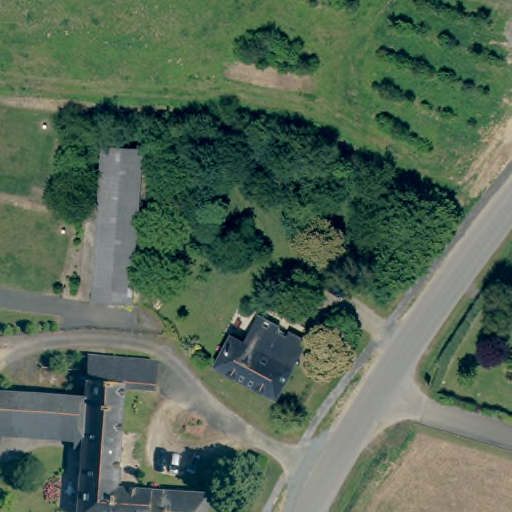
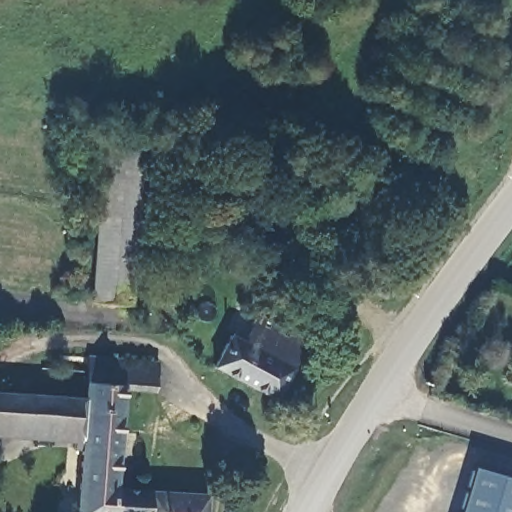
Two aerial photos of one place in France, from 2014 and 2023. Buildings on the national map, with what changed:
unchanged [(95,297),(105,142),(145,144),(134,300),(95,297)]
unchanged [(253,318),(274,329),(271,334),(281,339),(283,334),(301,343),(273,399),(210,366),(223,339),(237,347),(253,318)]
unchanged [(0,428),(0,389),(76,395),(86,396),(89,352),(156,357),(154,374),(126,373),(120,461),(82,459),(84,449),(72,448),(74,433),(0,428)]
unchanged [(82,459),(120,461),(120,479),(119,489),(116,512),(79,512),(82,459)]
new [(472,467),(512,479),(512,512),(459,512),(472,467)]
unchanged [(119,489),(212,496),(211,512),(116,512),(119,489)]

